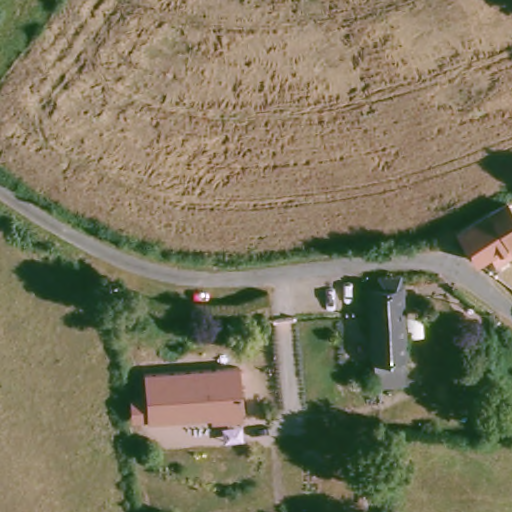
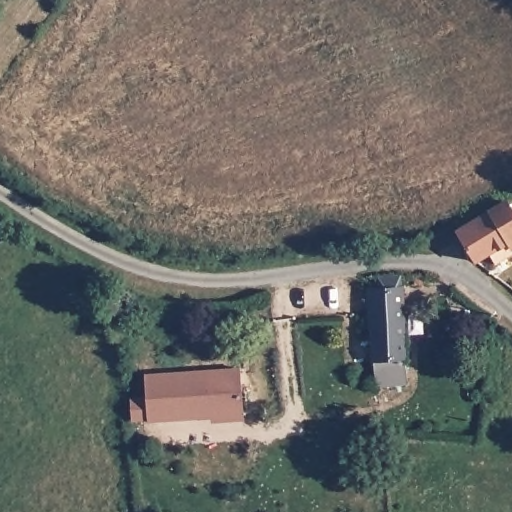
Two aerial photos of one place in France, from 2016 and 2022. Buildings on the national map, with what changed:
unchanged [(507,203),(512,213),(512,248),(507,251),(502,243),(474,259),(455,231),(507,203)]
unchanged [(408,393),(374,395),(364,290),(398,286),(408,393)]
unchanged [(239,411),(193,416),(192,410),(163,413),(163,417),(144,418),(141,370),(236,364),(239,411)]

